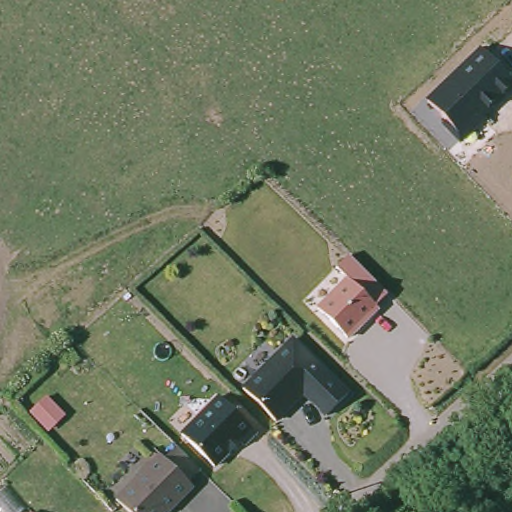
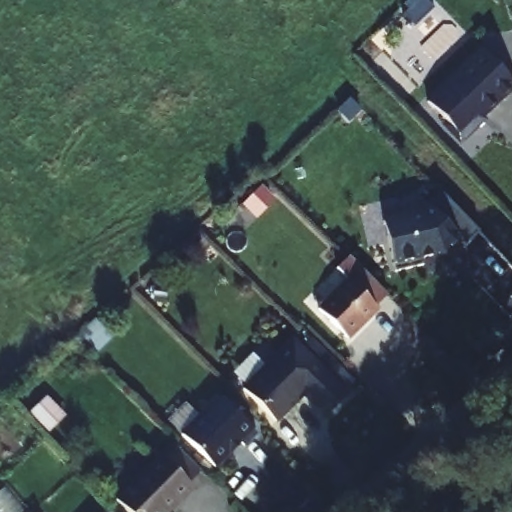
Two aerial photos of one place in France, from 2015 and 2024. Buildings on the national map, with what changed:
unchanged [(509,74),(503,81),(512,90),(512,93),(459,146),(441,126),(445,121),(424,101),(483,46),(509,74)]
new [(482,230),(467,245),(460,238),(446,253),(422,260),(424,267),(395,274),(382,223),(424,211),(445,191),(482,230)]
unchanged [(389,295),(377,306),(382,310),(349,342),(317,307),(345,280),(337,271),(350,259),(389,295)]
unchanged [(290,342),(345,397),(324,419),(301,396),(273,424),(240,391),(290,342)]
unchanged [(253,436),(240,448),(237,443),(210,468),(179,435),(217,398),(253,436)]
unchanged [(185,483),(189,487),(175,502),(174,500),(162,512),(126,512),(114,501),(156,456),(160,460),(172,446),(197,471),(185,483)]
unchanged [(37,509),(40,512),(33,512),(37,509)]

